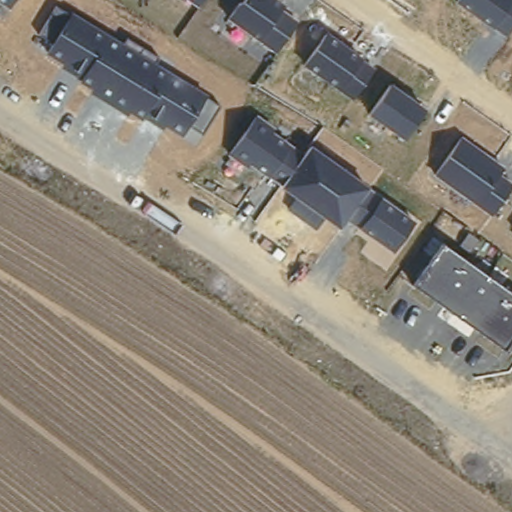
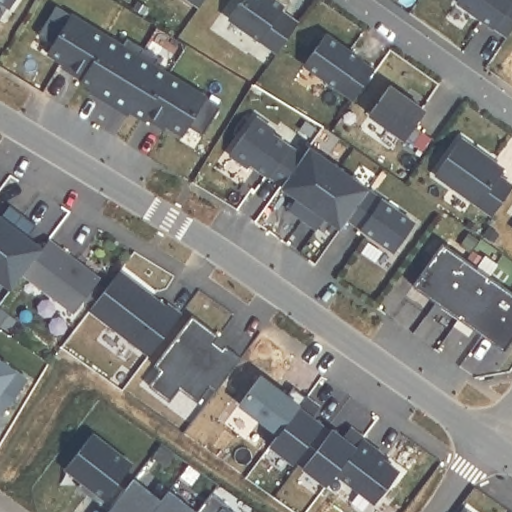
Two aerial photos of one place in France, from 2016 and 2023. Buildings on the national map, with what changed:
unchanged [(0,0),(16,0),(10,8),(0,1),(0,0)]
unchanged [(191,0),(205,0),(201,7),(191,0)]
unchanged [(227,22),(244,0),(280,0),(287,5),(283,11),(299,23),(279,53),(227,22)]
unchanged [(456,4),(459,0),(512,0),(512,32),(508,39),(456,4)]
unchanged [(71,12),(73,11),(125,42),(128,39),(159,57),(156,63),(208,96),(206,98),(220,106),(204,134),(189,126),(182,136),(165,128),(164,128),(164,130),(145,118),(144,121),(130,113),(128,117),(90,92),(92,89),(79,81),(80,77),(61,66),(63,64),(46,52),(49,46),(36,37),(56,7),(71,12)]
unchanged [(354,100),(304,65),(328,32),(378,66),(354,100)]
unchanged [(428,109),(405,141),(371,116),(391,85),(428,109)]
unchanged [(278,127),(275,132),(305,151),(310,145),(417,220),(394,255),(358,230),(359,227),(348,220),(340,230),(327,220),(319,230),(289,210),(298,197),(280,186),(283,182),(269,177),(268,179),(251,167),(249,170),(229,156),(258,114),(278,127)]
unchanged [(508,165),(502,176),(512,183),(512,187),(494,216),(436,177),(463,137),(508,165)]
new [(11,207),(24,217),(0,248),(0,217),(1,219),(11,207)]
new [(38,227),(29,239),(43,250),(13,289),(0,279),(0,248),(24,217),(38,227)]
new [(49,241),(100,280),(74,315),(23,276),(43,250),(49,241)]
unchanged [(512,292),(512,345),(506,354),(414,288),(444,246),(512,292)]
new [(120,272),(166,307),(168,305),(182,315),(150,356),(91,310),(120,272)]
new [(9,332),(0,326),(0,311),(1,310),(17,321),(9,332)]
new [(220,337),(215,343),(223,350),(225,347),(242,359),(217,392),(210,388),(199,404),(180,390),(170,403),(149,387),(161,372),(154,367),(193,317),(220,337)]
new [(1,415),(0,414),(0,360),(28,378),(1,415)]
new [(240,404),(262,376),(288,396),(294,388),(307,397),(279,434),(240,404)]
new [(294,463),(270,445),(307,397),(320,407),(313,417),(323,426),(297,461),(294,463)]
new [(323,426),(331,432),(304,467),(296,461),(323,426)]
new [(344,438),(352,428),(364,437),(328,486),(304,467),(333,430),(344,438)]
new [(83,481),(66,469),(93,435),(133,465),(101,505),(88,495),(78,487),(83,481)]
new [(363,440),(376,450),(374,452),(399,472),(376,503),(337,473),(363,440)]
new [(198,512),(212,495),(234,512),(198,512)]
new [(469,512),(467,512),(468,511),(469,512)]

